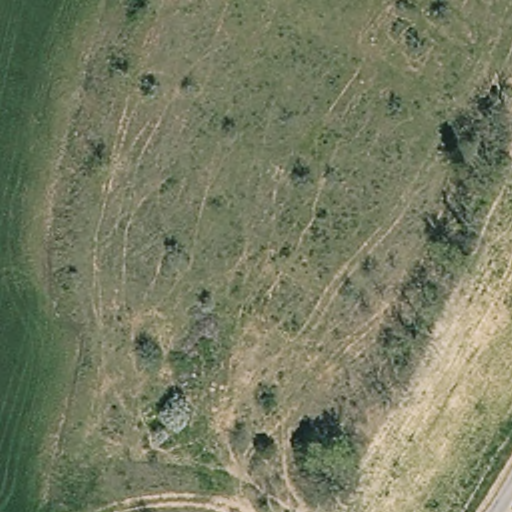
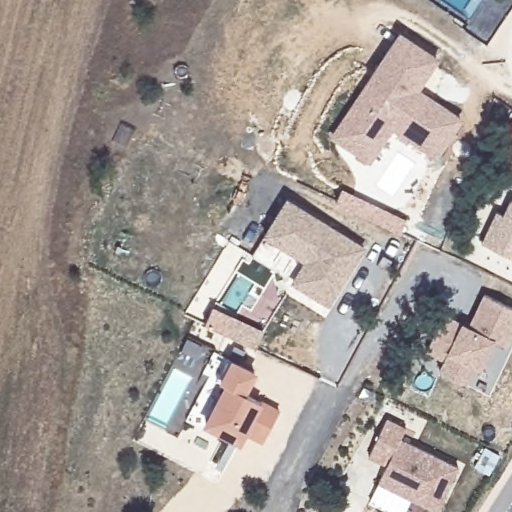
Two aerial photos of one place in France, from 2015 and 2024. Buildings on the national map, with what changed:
new [(385,91),(372,82),(406,34),(442,58),(422,88),(465,118),(442,155),(397,125),(375,158),(350,143),(385,91)]
new [(372,82),(385,91),(350,143),(333,134),(372,82)]
new [(298,197),(380,242),(347,300),(306,278),(318,257),(277,232),(298,197)]
new [(480,243),(497,212),(502,214),(510,200),(512,199),(512,257),(480,243)]
new [(453,320),(478,332),(494,299),(512,308),(512,350),(503,345),(490,374),(483,371),(475,389),(450,376),(455,365),(436,356),(453,320)]
new [(237,382),(227,377),(238,357),(265,371),(255,391),(291,410),(275,439),(257,429),(251,440),(217,422),(237,382)]
new [(398,424),(418,433),(413,444),(470,471),(451,512),(445,512),(391,487),(400,469),(381,460),(398,424)]

